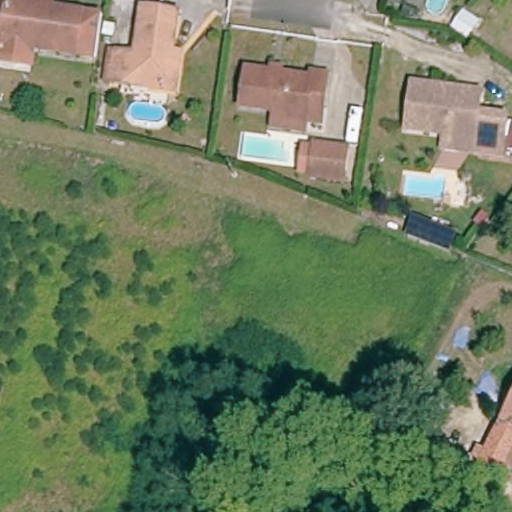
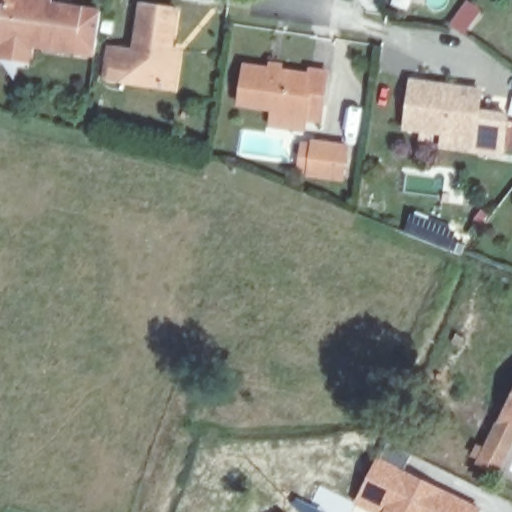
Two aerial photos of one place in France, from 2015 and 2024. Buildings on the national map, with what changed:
unchanged [(0,35),(0,0),(41,0),(41,3),(94,9),(91,25),(88,51),(24,44),(22,60),(0,57),(0,35)]
unchanged [(111,83),(117,44),(132,45),(137,8),(175,13),(169,50),(176,51),(171,91),(150,88),(150,79),(128,76),(127,85),(111,83)]
unchanged [(302,118),(301,128),(268,123),(271,108),(237,103),(243,64),(308,75),(309,70),(325,73),(320,106),(317,120),(302,118)]
unchanged [(442,146),(443,134),(406,130),(412,81),(478,90),(478,111),(507,113),(504,140),(502,153),(442,146)]
unchanged [(344,179),(311,174),(311,172),(301,170),(303,160),(305,143),(315,144),(348,149),(344,179)]
unchanged [(512,402),(512,426),(502,421),(512,402)]
new [(386,444),(413,454),(406,469),(482,506),(479,512),(366,512),(352,504),(386,444)]

